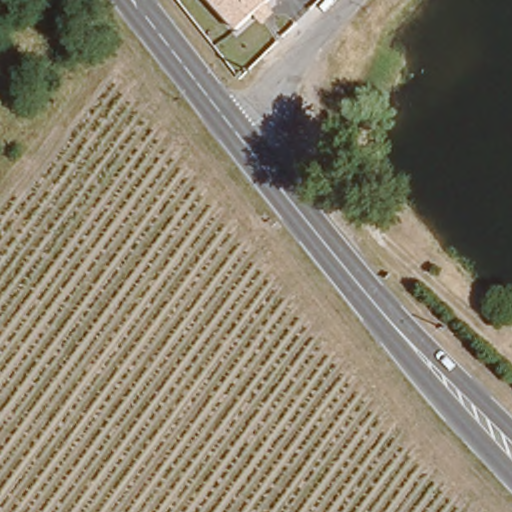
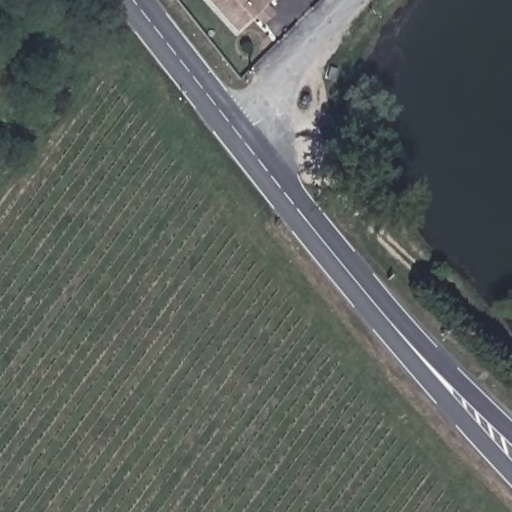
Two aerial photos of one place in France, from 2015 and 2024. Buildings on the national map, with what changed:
unchanged [(258,11),(239,28),(214,0),(271,0),(267,4),(275,12),(265,20),(258,11)]

